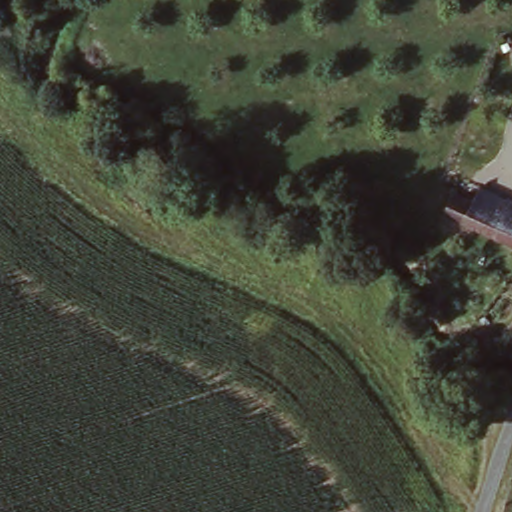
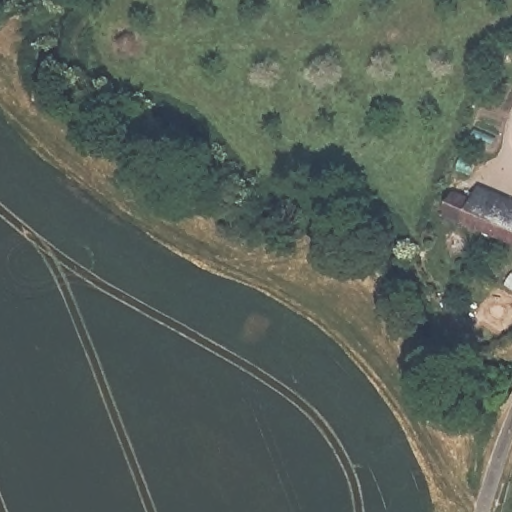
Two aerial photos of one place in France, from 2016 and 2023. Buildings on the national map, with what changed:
unchanged [(511,242),(475,230),(446,221),(448,215),(440,212),(447,197),(452,198),(459,181),(512,200),(512,243),(511,242)]

